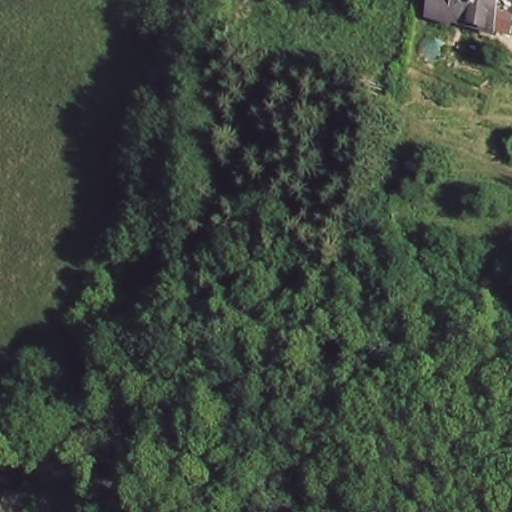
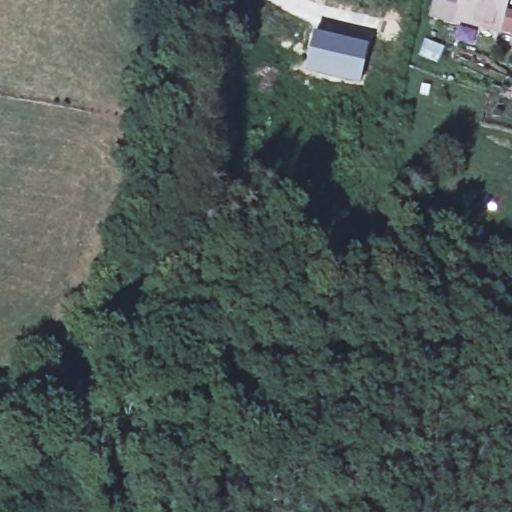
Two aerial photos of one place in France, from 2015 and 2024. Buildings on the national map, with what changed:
unchanged [(495,27),(458,16),(456,24),(433,17),(437,0),(503,0),(495,27)]
new [(314,33),(369,46),(360,86),(304,72),(314,33)]

